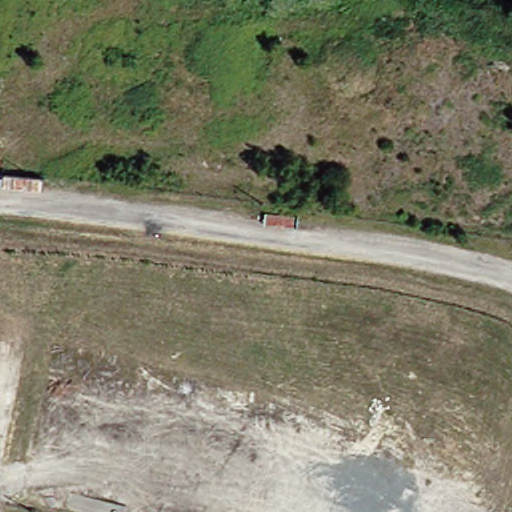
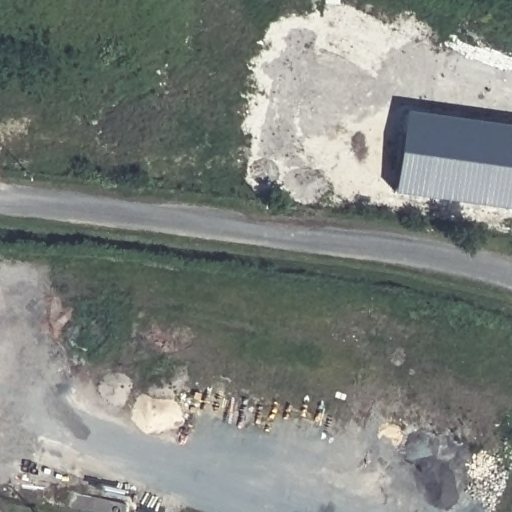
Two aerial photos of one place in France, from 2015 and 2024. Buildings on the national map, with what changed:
new [(512,125),(512,208),(395,192),(406,109),(512,125)]

